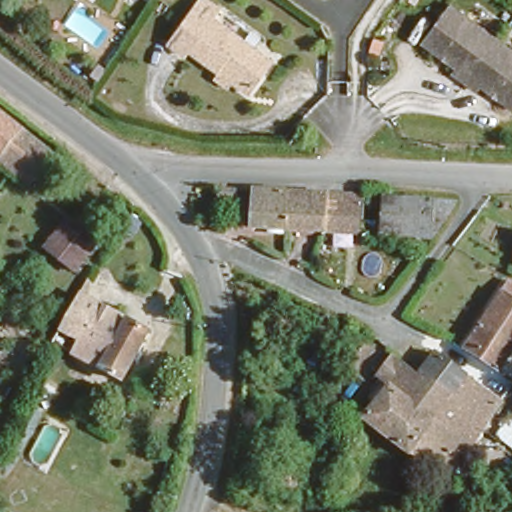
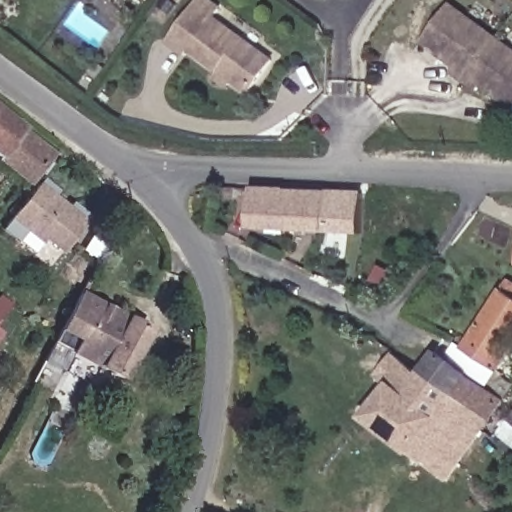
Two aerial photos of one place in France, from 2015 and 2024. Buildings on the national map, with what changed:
unchanged [(219,71),(191,50),(185,58),(166,44),(172,36),(198,0),(208,0),(221,10),(215,18),(273,61),(250,95),(234,82),(229,88),(215,77),(219,71)]
unchanged [(477,81),(473,86),(447,68),(451,63),(416,37),(443,0),(445,0),(512,48),(512,105),(511,106),(477,81)]
unchanged [(99,80),(92,75),(100,65),(106,70),(99,80)]
unchanged [(35,183),(0,155),(0,109),(57,155),(35,183)]
new [(39,184),(86,222),(60,254),(45,241),(41,246),(10,220),(39,184)]
unchanged [(237,198),(216,198),(220,189),(237,189),(237,198)]
unchanged [(327,233),(252,229),(255,190),(308,192),(330,193),(327,233)]
unchanged [(363,235),(327,233),(330,193),(365,195),(363,235)]
unchanged [(433,242),(380,236),(382,196),(458,200),(433,242)]
demolished [(76,272),(46,247),(67,221),(97,245),(76,272)]
unchanged [(508,259),(512,242),(512,260),(508,259)]
unchanged [(494,373),(460,351),(505,281),(512,286),(512,344),(494,373)]
unchanged [(0,316),(0,298),(9,305),(0,316)]
unchanged [(133,384),(62,347),(88,298),(159,336),(133,384)]
unchanged [(336,389),(315,379),(311,385),(300,379),(308,362),(303,359),(311,346),(321,351),(320,353),(348,366),(336,389)]
unchanged [(369,420),(393,387),(381,379),(399,356),(424,375),(427,370),(440,353),(471,375),(486,386),(507,400),(450,482),(369,420)]
unchanged [(496,434),(512,416),(512,448),(496,434)]

